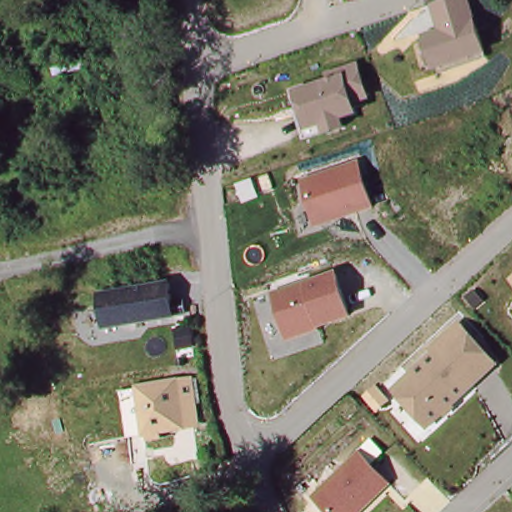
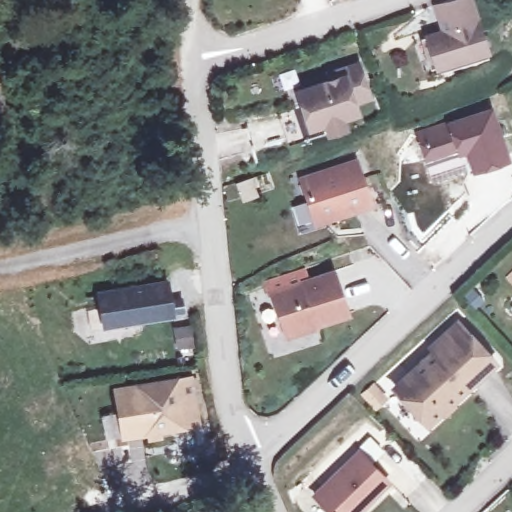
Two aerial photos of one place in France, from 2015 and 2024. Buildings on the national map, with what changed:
unchanged [(439,32),(430,6),(447,0),(473,0),(489,54),(430,72),(420,38),(439,32)]
unchanged [(328,137),(325,126),(309,131),(295,88),(332,78),(328,71),(364,60),(375,97),(360,103),(363,113),(347,117),(350,128),(328,137)]
new [(472,174),(467,153),(460,155),(427,165),(417,134),(449,124),(493,110),(498,125),(511,160),(472,174)]
unchanged [(357,163),(372,206),(317,224),(303,181),(357,163)]
unchanged [(354,317),(288,338),(272,289),(337,269),(354,317)]
unchanged [(512,272),(512,281),(507,276),(512,272)]
unchanged [(158,277),(160,289),(175,287),(180,314),(101,331),(92,291),(158,277)]
unchanged [(463,327),(497,364),(430,425),(397,388),(463,327)]
unchanged [(175,427),(175,433),(146,441),(133,387),(182,374),(197,420),(175,427)]
unchanged [(394,484),(364,512),(332,512),(313,494),(362,448),(394,484)]

